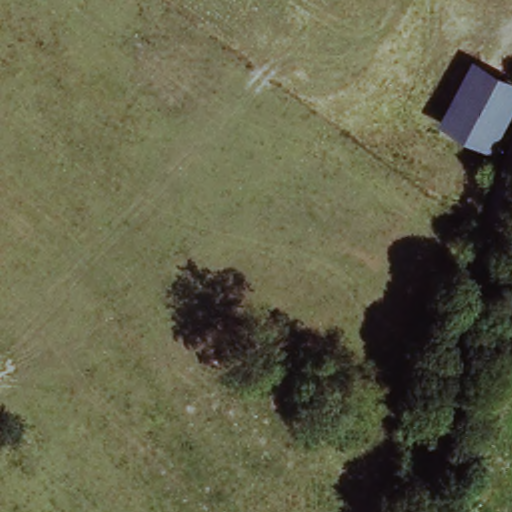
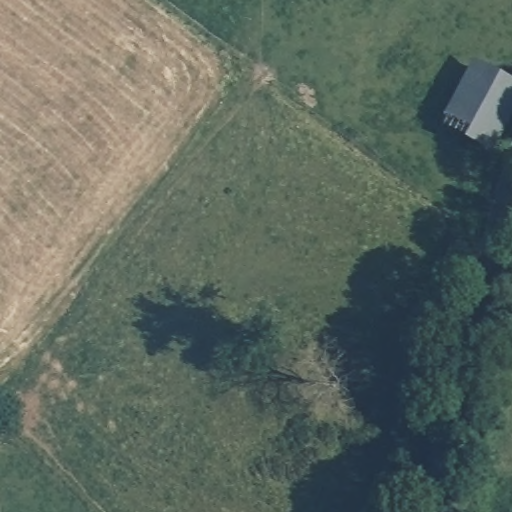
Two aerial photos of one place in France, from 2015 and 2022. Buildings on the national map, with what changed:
unchanged [(512,58),(512,87),(497,77),(512,58)]
unchanged [(482,150),(445,130),(478,67),(497,77),(512,87),(512,97),(482,150)]

